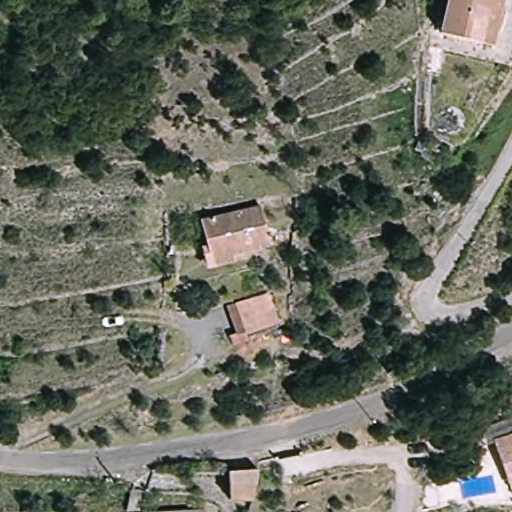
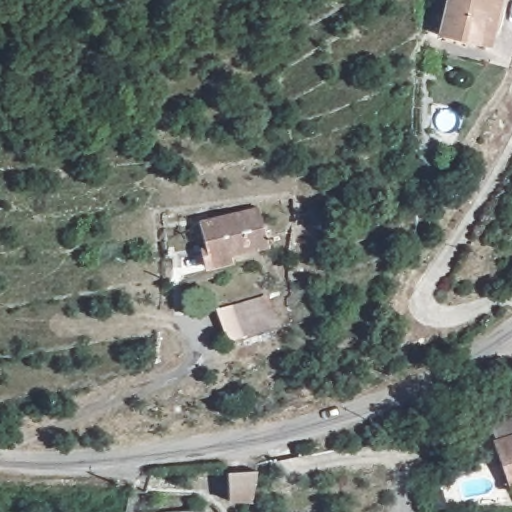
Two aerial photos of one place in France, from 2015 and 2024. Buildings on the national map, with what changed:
unchanged [(475,43),(436,33),(443,0),(499,0),(488,46),(475,43)]
unchanged [(204,255),(199,220),(262,207),(269,256),(228,264),(206,270),(204,255)]
unchanged [(213,310),(268,290),(281,332),(230,354),(213,310)]
unchanged [(492,438),(512,433),(512,485),(505,487),(492,438)]
unchanged [(251,500),(233,503),(229,474),(257,469),(251,500)]

